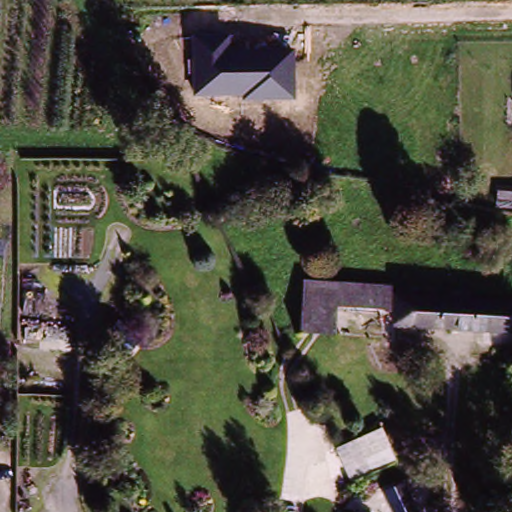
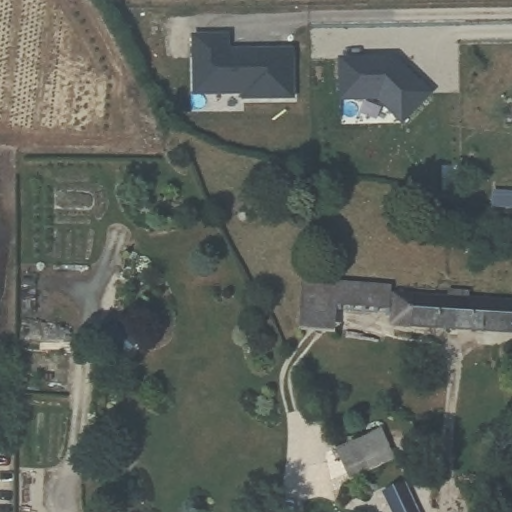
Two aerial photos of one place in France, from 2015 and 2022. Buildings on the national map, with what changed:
unchanged [(242,101),(242,96),(192,96),(191,34),(230,35),(231,50),(294,47),(295,101),(242,101)]
new [(377,55),(377,58),(387,58),(387,55),(392,55),(427,91),(400,119),(375,95),(339,96),(339,56),(377,55)]
unchanged [(512,298),(512,330),(390,325),(392,308),(334,305),(332,332),(297,331),(300,279),(425,286),(425,297),(512,298)]
unchanged [(338,451),(357,442),(380,431),(394,461),(372,471),(354,479),(339,451),(338,451)]
unchanged [(391,495),(410,487),(421,512),(399,512),(391,495)]

